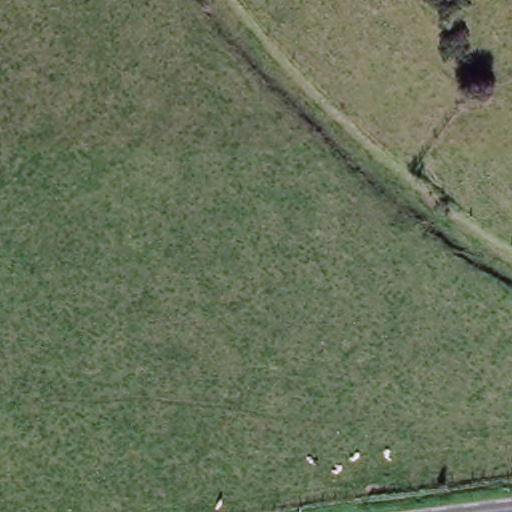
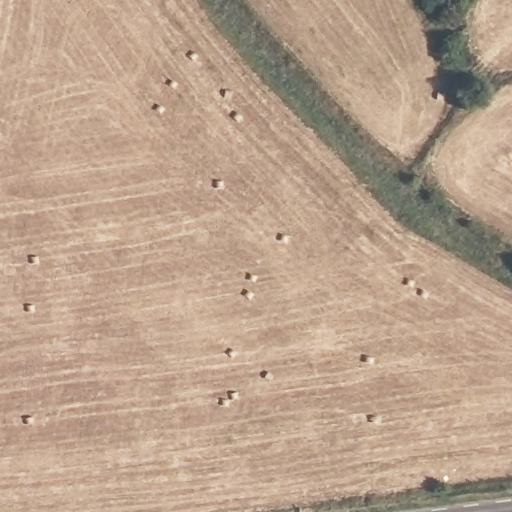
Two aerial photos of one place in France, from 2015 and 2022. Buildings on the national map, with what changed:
[]

